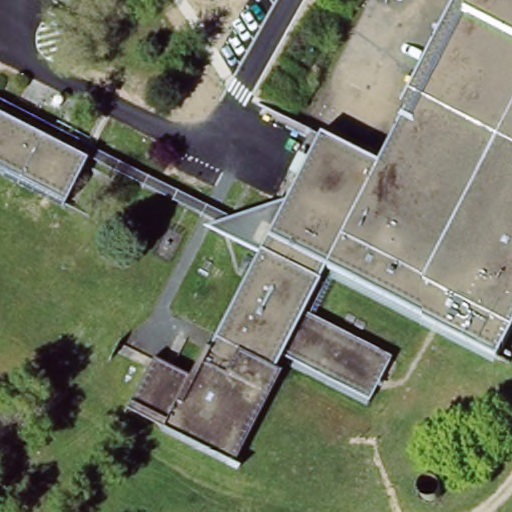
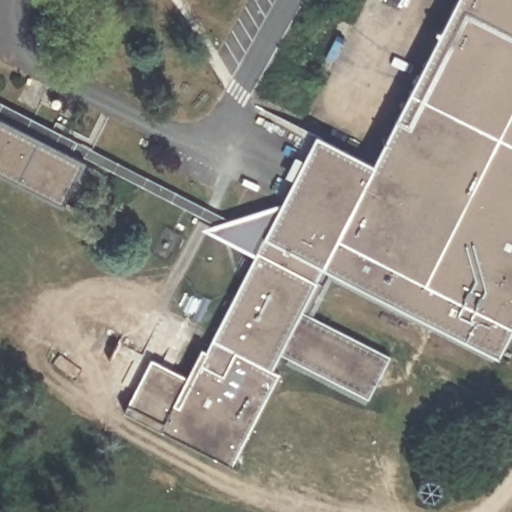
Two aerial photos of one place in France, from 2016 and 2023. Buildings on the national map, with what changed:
unchanged [(287,203),(319,140),(372,167),(459,0),(512,0),(512,330),(495,362),(335,280),(314,320),(380,355),(357,398),(280,358),(272,373),(285,380),(240,470),(124,411),(142,373),(116,360),(125,342),(190,373),(203,348),(210,351),(213,343),(256,262),(202,235),(287,203)]
unchanged [(207,232),(80,166),(0,124),(0,112),(222,226),(207,232)]
unchanged [(80,166),(57,211),(0,181),(0,124),(80,166)]

